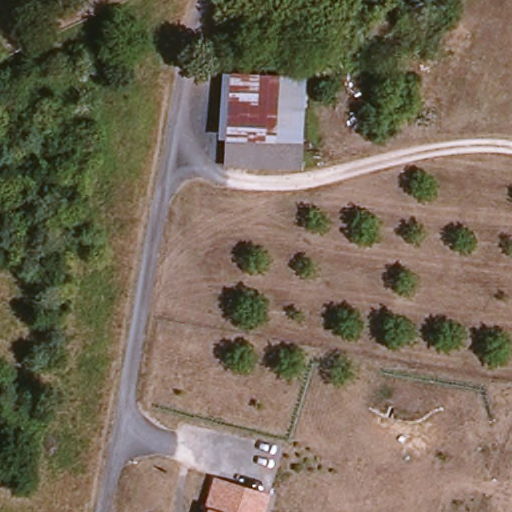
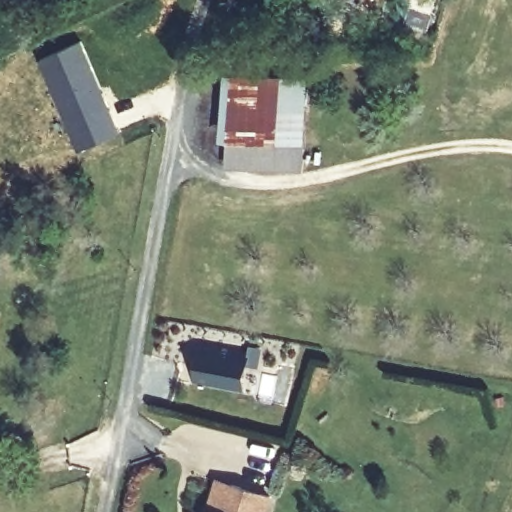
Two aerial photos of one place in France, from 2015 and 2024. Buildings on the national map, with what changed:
unchanged [(311,6),(311,0),(347,0),(348,6),(311,6)]
new [(80,39),(119,129),(79,148),(38,58),(80,39)]
unchanged [(235,71),(308,84),(298,145),(223,132),(235,71)]
unchanged [(298,145),(291,176),(218,164),(223,132),(298,145)]
unchanged [(206,507),(216,478),(274,494),(269,512),(211,512),(212,509),(206,507)]

